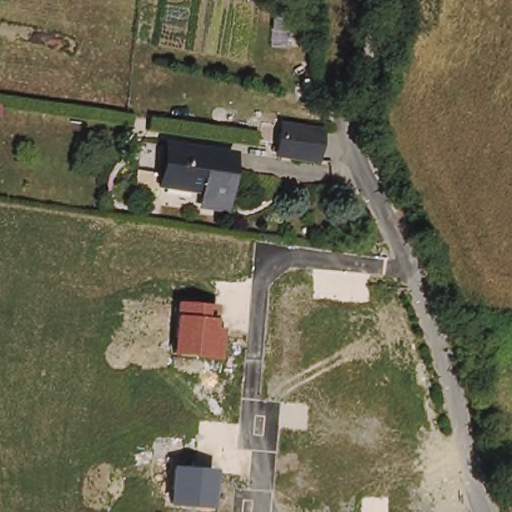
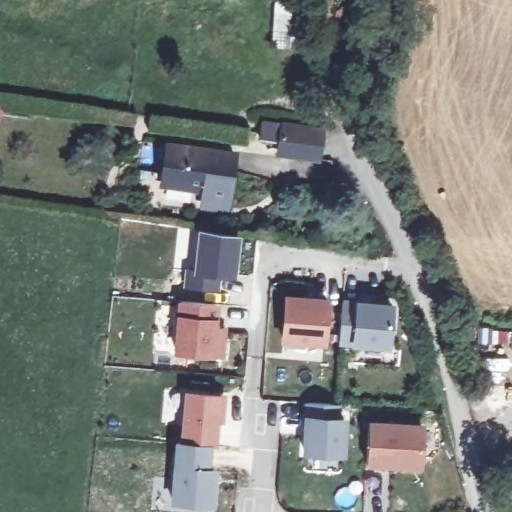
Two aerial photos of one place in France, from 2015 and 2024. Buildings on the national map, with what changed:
new [(3,117),(0,117),(0,92),(138,112),(136,127),(3,108),(3,117)]
unchanged [(284,127),(319,132),(318,145),(316,159),(279,154),(281,140),(284,127)]
unchanged [(200,199),(201,184),(158,177),(164,139),(233,149),(226,202),(200,199)]
new [(185,267),(192,268),(198,227),(241,235),(234,277),(220,276),(218,290),(183,288),(185,267)]
new [(279,342),(284,296),(329,299),(326,347),(279,342)]
unchanged [(217,305),(216,329),(226,330),(223,359),(172,355),(177,301),(217,305)]
new [(353,346),(339,346),(342,301),(356,301),(396,304),(392,350),(353,346)]
new [(171,467),(173,440),(181,440),(185,390),(221,393),(218,449),(216,470),(171,467)]
new [(304,455),(305,418),(302,418),(303,401),(336,403),(336,417),(348,418),(344,457),(304,455)]
new [(364,466),(369,420),(424,423),(422,470),(364,466)]
unchanged [(216,470),(213,508),(170,505),(171,467),(216,470)]

